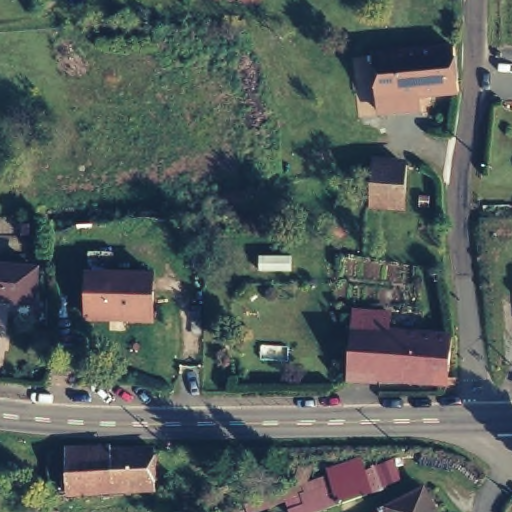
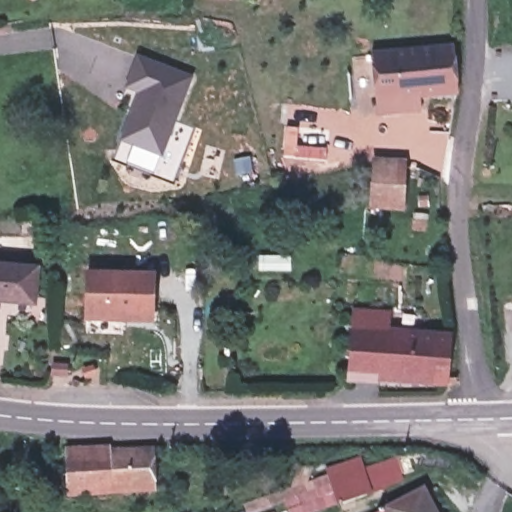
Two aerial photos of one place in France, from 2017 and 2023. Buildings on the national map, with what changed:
unchanged [(370,54),(450,49),(451,92),(373,97),(370,54)]
new [(121,140),(140,93),(126,87),(138,56),(192,77),(163,156),(121,140)]
unchanged [(402,210),(374,210),(375,178),(402,177),(402,210)]
unchanged [(36,264),(33,294),(0,290),(0,260),(36,264)]
unchanged [(87,318),(90,268),(152,270),(151,319),(87,318)]
unchanged [(450,382),(345,376),(345,365),(328,366),(326,332),(348,331),(350,303),(395,303),(396,323),(450,325),(450,382)]
unchanged [(59,446),(83,446),(168,445),(167,487),(81,487),(60,487),(59,446)]
unchanged [(311,477),(325,472),(321,462),(360,450),(367,470),(384,465),(388,481),(315,512),(301,512),(295,482),(311,477)]
unchanged [(289,487),(293,464),(312,466),(311,477),(295,482),(301,512),(288,512),(285,505),(278,507),(280,512),(247,512),(245,500),(289,487)]
unchanged [(435,512),(373,512),(425,489),(435,512)]

